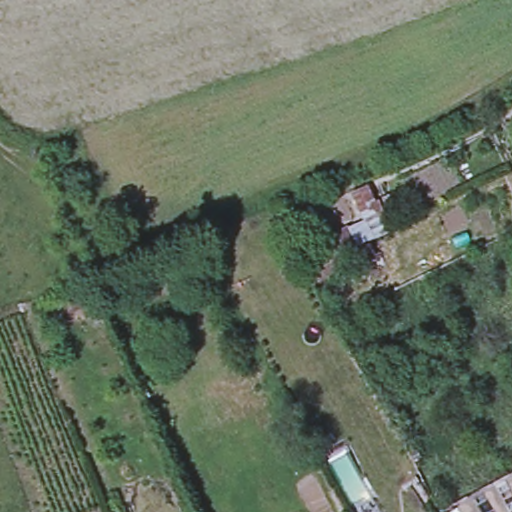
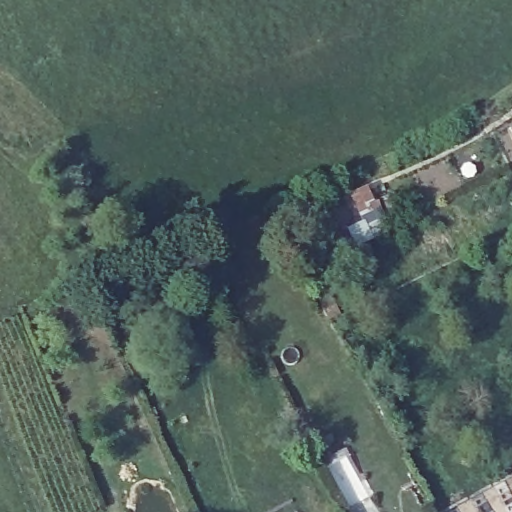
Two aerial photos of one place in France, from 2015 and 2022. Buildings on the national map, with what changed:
unchanged [(390,232),(375,239),(361,212),(354,198),(365,193),(372,207),(377,204),(390,232)]

